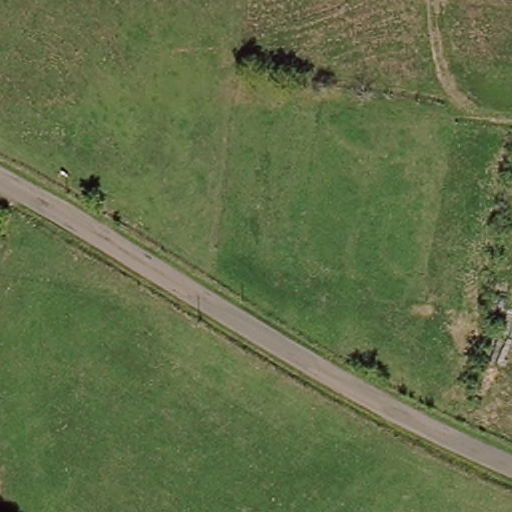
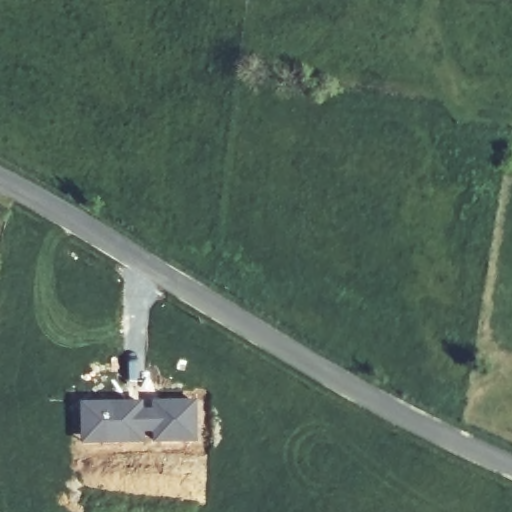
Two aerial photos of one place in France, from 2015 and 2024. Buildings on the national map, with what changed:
new [(142,398),(198,398),(200,442),(81,444),(80,401),(142,398)]

